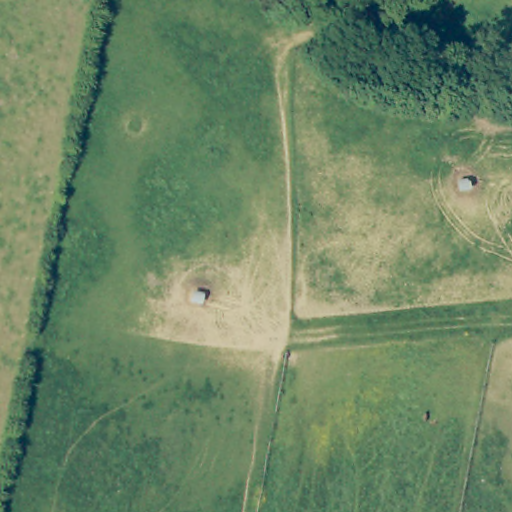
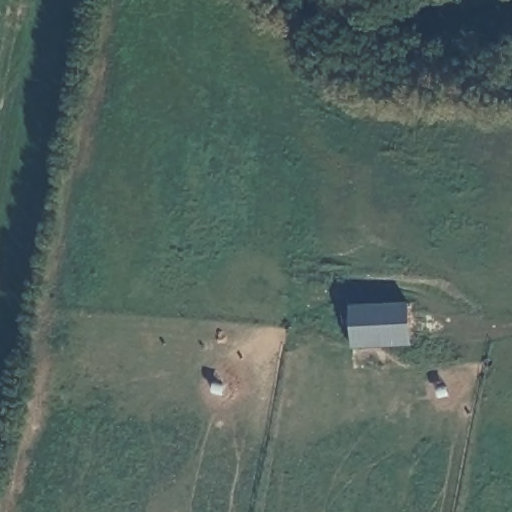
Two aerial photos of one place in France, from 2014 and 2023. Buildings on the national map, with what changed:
new [(413,346),(353,349),(350,304),(408,302),(413,346)]

